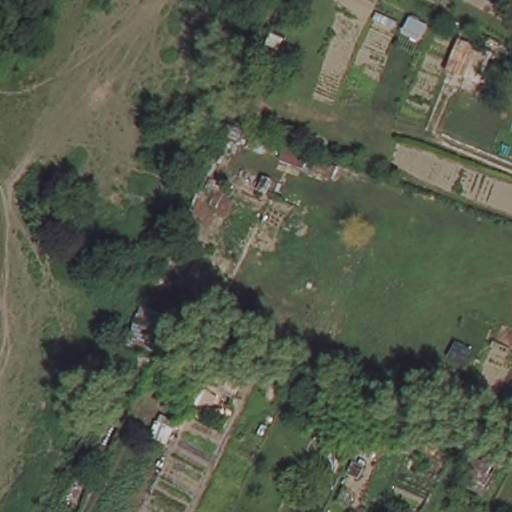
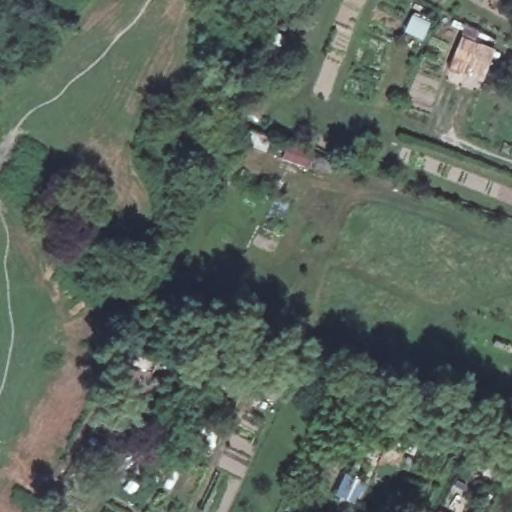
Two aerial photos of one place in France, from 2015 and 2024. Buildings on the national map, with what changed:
unchanged [(469,69),(465,79),(442,72),(458,31),(498,45),(486,76),(469,69)]

